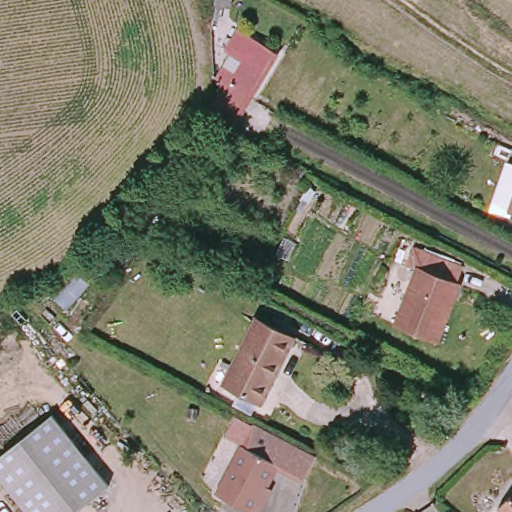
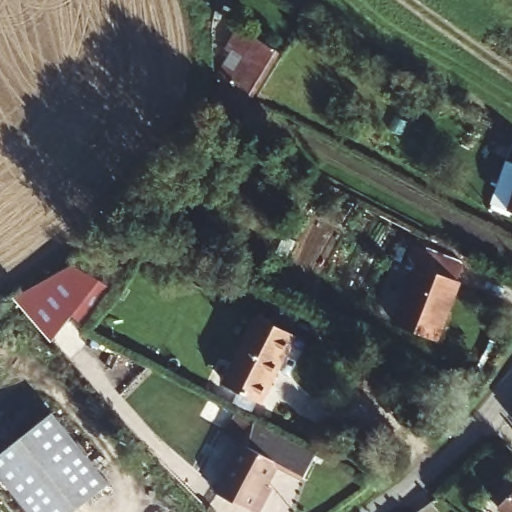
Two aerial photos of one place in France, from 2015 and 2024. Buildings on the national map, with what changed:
unchanged [(219,102),(219,75),(233,49),(228,45),(232,38),(251,49),(258,37),(279,49),(254,94),(252,92),(239,114),(219,102)]
unchanged [(501,139),(512,143),(512,160),(496,152),(501,139)]
unchanged [(512,161),(512,211),(495,205),(512,161)]
unchanged [(409,265),(419,247),(475,280),(465,298),(459,295),(430,345),(390,322),(419,270),(409,265)]
new [(20,314),(48,265),(89,288),(61,338),(20,314)]
unchanged [(295,337),(260,398),(220,374),(258,314),(295,337)]
unchanged [(106,486),(70,512),(33,512),(0,465),(0,449),(53,410),(106,486)]
unchanged [(259,512),(256,512),(216,495),(239,447),(281,462),(259,512)]
unchanged [(512,512),(511,512),(499,500),(512,487),(512,512)]

